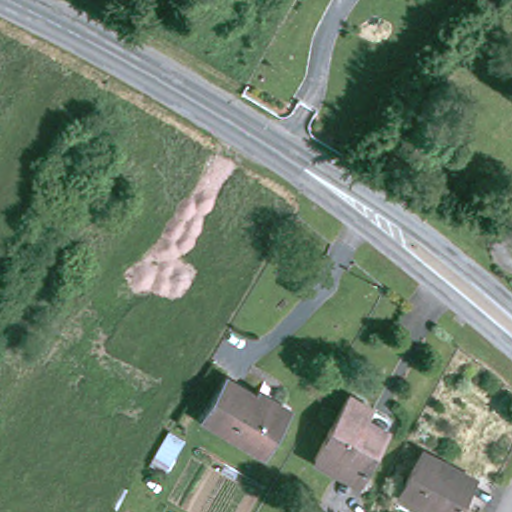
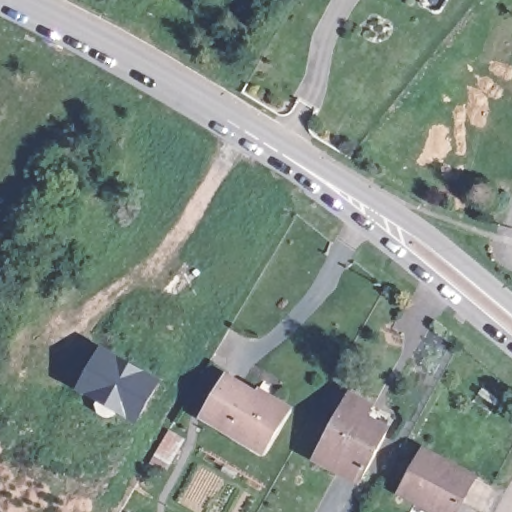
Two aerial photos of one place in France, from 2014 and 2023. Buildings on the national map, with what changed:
new [(102,350),(158,383),(136,422),(117,411),(114,416),(106,418),(97,414),(96,405),(98,400),(79,389),(102,350)]
unchanged [(269,399),(289,411),(263,453),(202,417),(227,378),(267,403),(269,399)]
unchanged [(362,479),(340,467),(337,471),(314,458),(349,396),(372,408),(365,422),(387,433),(362,479)]
unchanged [(459,512),(447,512),(405,489),(427,446),(480,474),(459,512)]

